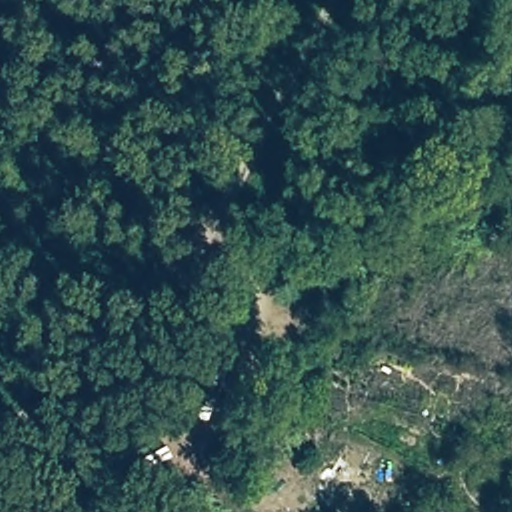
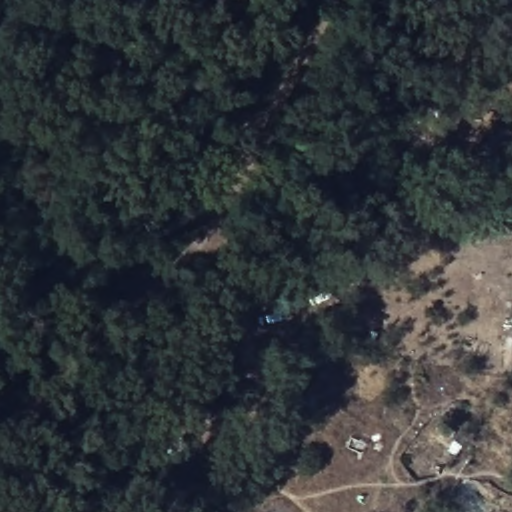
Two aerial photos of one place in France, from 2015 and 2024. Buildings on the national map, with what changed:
unchanged [(508,247),(512,245),(512,253),(508,247)]

